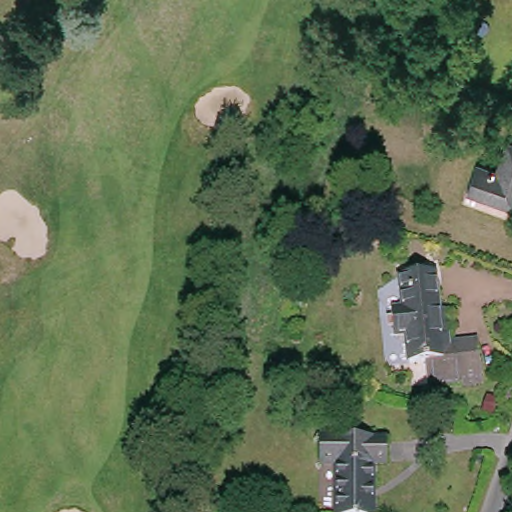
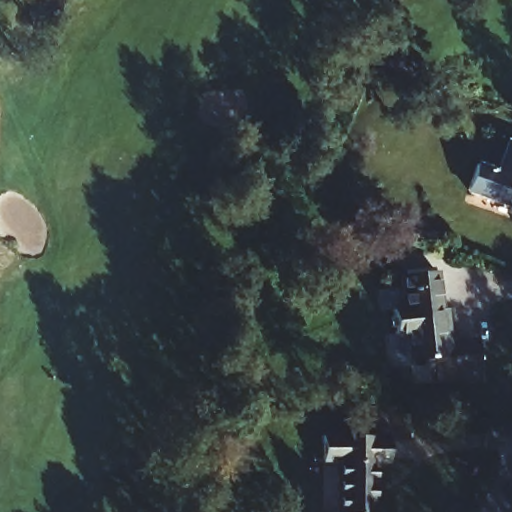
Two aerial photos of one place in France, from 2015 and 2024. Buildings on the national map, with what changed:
unchanged [(498,171),(507,149),(512,151),(512,208),(472,194),(481,166),(498,171)]
unchanged [(400,322),(413,321),(410,292),(441,287),(446,323),(457,322),(460,345),(451,347),(451,359),(481,356),(484,387),(450,391),(435,394),(436,387),(434,373),(419,375),(417,352),(403,353),(400,322)]
unchanged [(370,460),(370,512),(333,512),(332,454),(315,455),(316,427),(367,427),(367,431),(384,430),(384,458),(370,460)]

